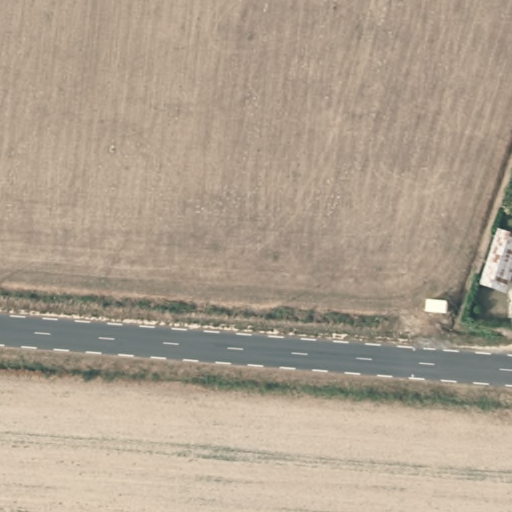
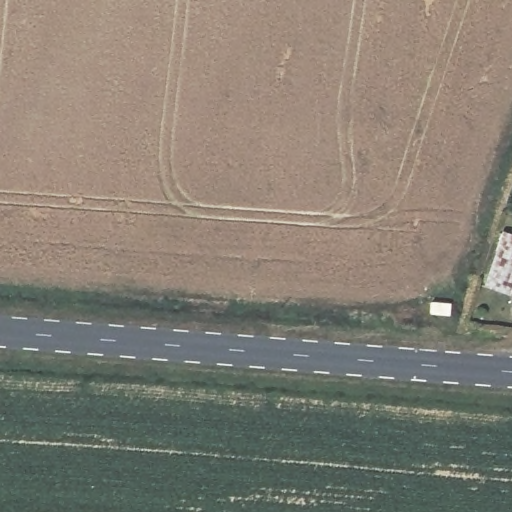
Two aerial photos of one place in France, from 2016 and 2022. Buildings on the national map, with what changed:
unchanged [(485,280),(501,228),(512,232),(512,273),(508,287),(485,280)]

